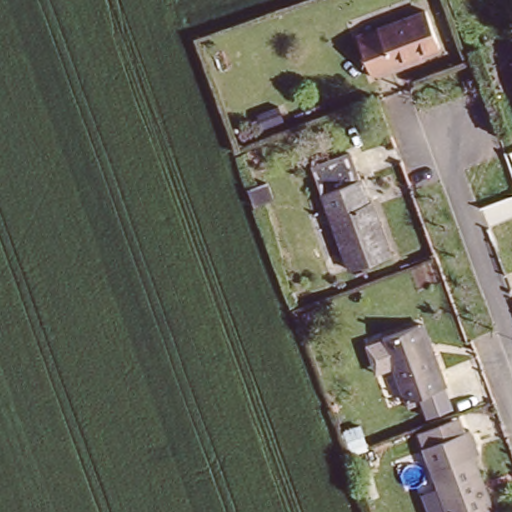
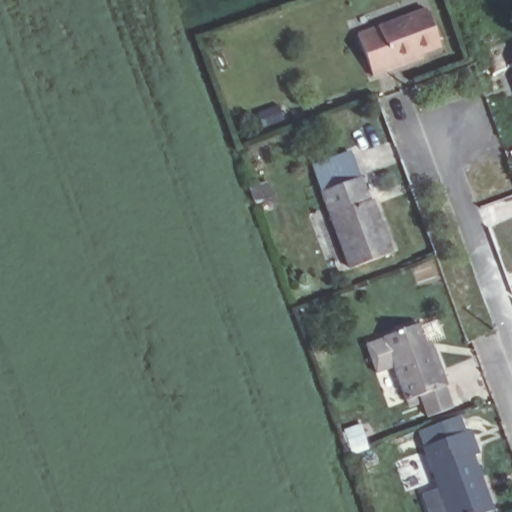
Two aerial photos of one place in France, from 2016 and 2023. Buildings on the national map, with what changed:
unchanged [(398,63),(375,71),(360,29),(430,4),(444,40),(423,48),(425,54),(398,63)]
unchanged [(372,195),(375,194),(397,248),(355,264),(324,188),(363,172),(372,195)]
unchanged [(448,379),(447,380),(407,397),(401,383),(383,337),(419,323),(429,348),(434,346),(448,379)]
unchanged [(469,428),(479,452),(474,454),(496,506),(481,512),(452,512),(424,446),(469,428)]

